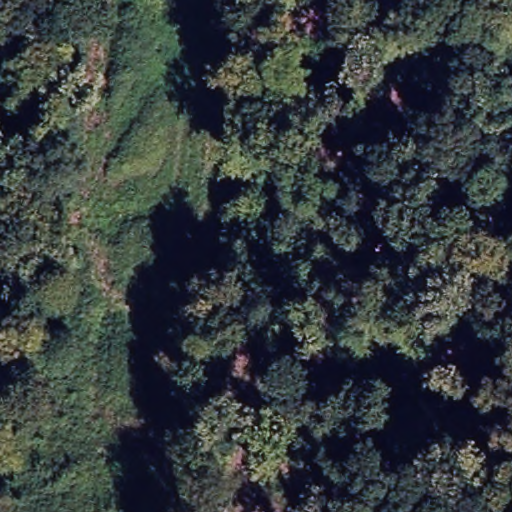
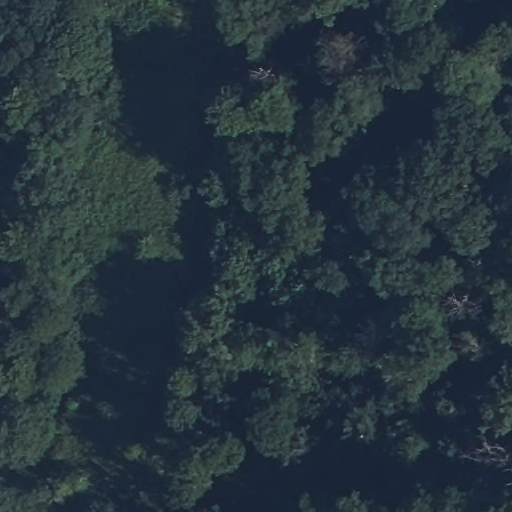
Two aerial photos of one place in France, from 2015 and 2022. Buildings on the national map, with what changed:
[]

